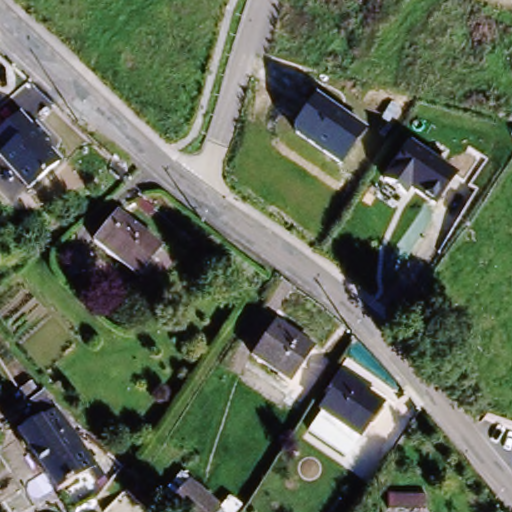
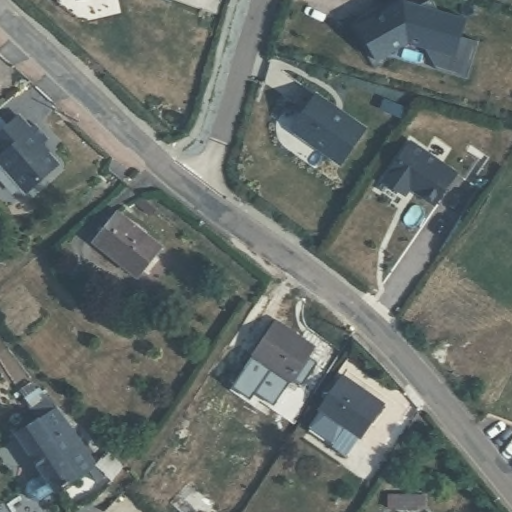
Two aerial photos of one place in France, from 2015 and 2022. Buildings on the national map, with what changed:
new [(82,0),(89,0),(82,1),(82,0)]
new [(173,0),(177,0),(176,1),(173,0)]
new [(405,6),(468,24),(463,43),(471,45),(464,69),(447,65),(442,56),(410,44),(379,61),(360,32),(405,6)]
unchanged [(320,91),(367,127),(340,165),(292,130),(320,91)]
unchanged [(0,157),(0,130),(15,117),(25,130),(31,126),(43,142),(37,147),(55,167),(23,195),(0,168),(0,164),(3,161),(0,157)]
unchanged [(381,181),(410,140),(458,173),(435,207),(410,191),(405,198),(381,181)]
unchanged [(93,241),(118,210),(160,244),(135,275),(93,241)]
unchanged [(312,347),(289,380),(247,352),(270,319),(312,347)]
unchanged [(356,439),(315,411),(340,378),(380,406),(356,439)]
unchanged [(27,403),(23,395),(36,387),(41,395),(27,403)]
unchanged [(105,476),(96,481),(86,468),(77,474),(55,489),(16,430),(37,416),(42,422),(49,417),(56,427),(64,422),(67,427),(68,426),(105,476)]
unchanged [(189,471),(227,502),(219,512),(176,512),(165,501),(189,471)]
unchanged [(385,504),(386,492),(425,493),(425,505),(385,504)]

